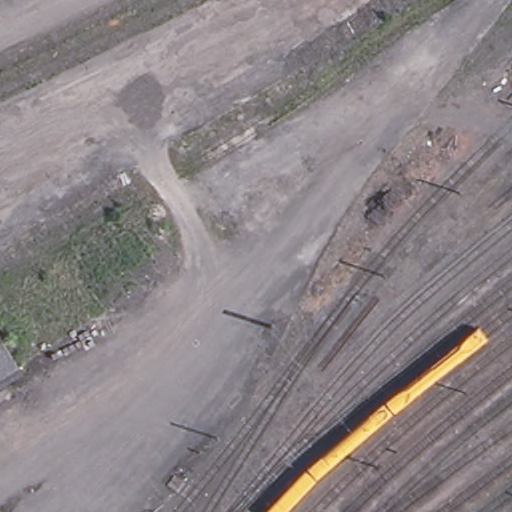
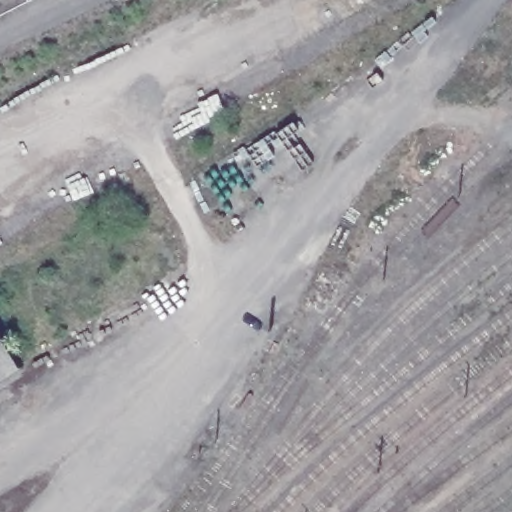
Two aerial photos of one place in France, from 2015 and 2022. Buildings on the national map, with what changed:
unchanged [(13,354),(0,362),(0,333),(13,354)]

